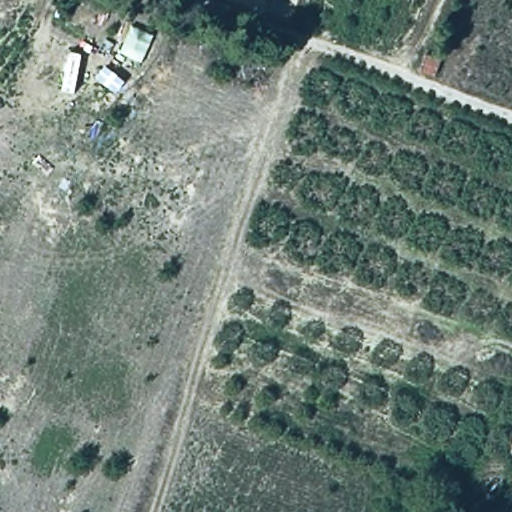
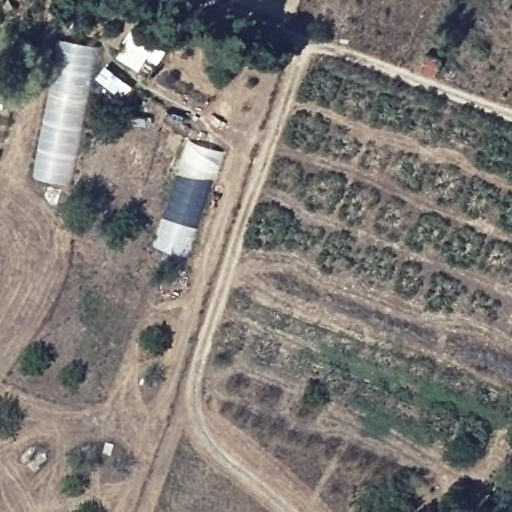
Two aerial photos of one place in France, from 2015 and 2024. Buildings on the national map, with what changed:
new [(30,187),(57,48),(97,56),(71,194),(30,187)]
unchanged [(440,59),(435,75),(418,70),(425,55),(440,59)]
new [(155,247),(187,141),(220,166),(191,258),(155,247)]

